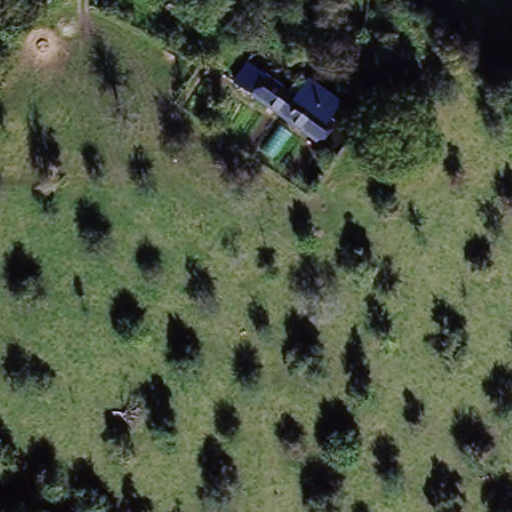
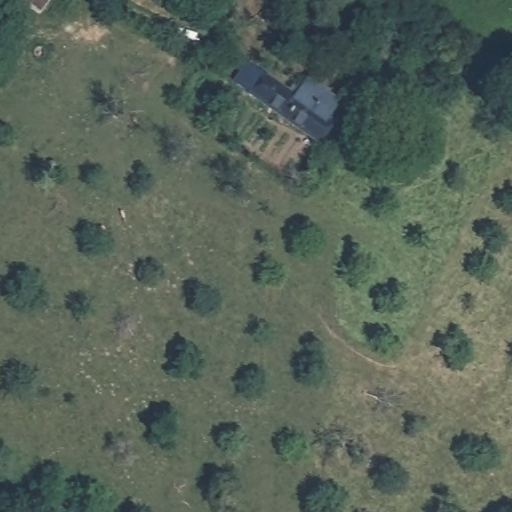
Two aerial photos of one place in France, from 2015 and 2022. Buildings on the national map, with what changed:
unchanged [(306,86),(339,108),(329,123),(331,125),(318,144),(248,95),(246,99),(232,89),(246,67),(261,78),(296,101),(306,86)]

